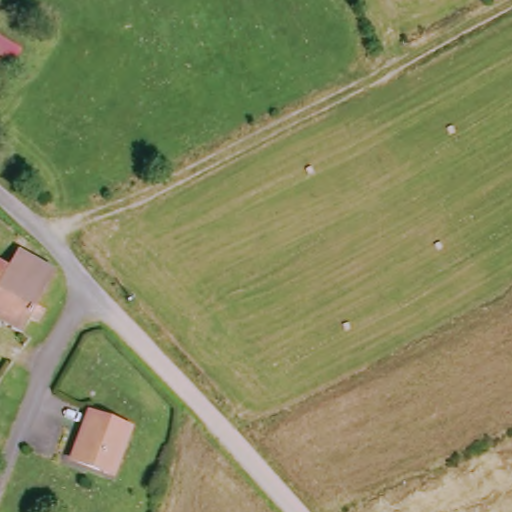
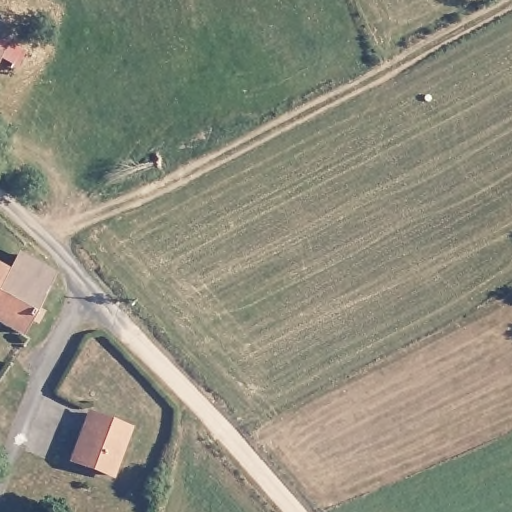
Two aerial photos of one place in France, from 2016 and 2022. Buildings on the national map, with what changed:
unchanged [(0,272),(7,261),(40,280),(25,312),(32,316),(27,329),(18,324),(12,338),(0,332),(0,272)]
unchanged [(69,466),(85,418),(122,431),(107,479),(69,466)]

